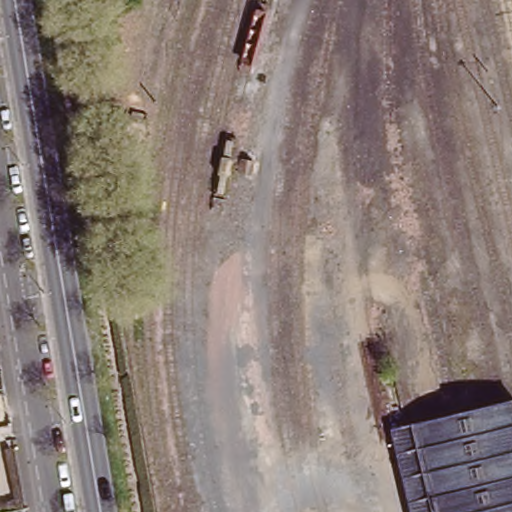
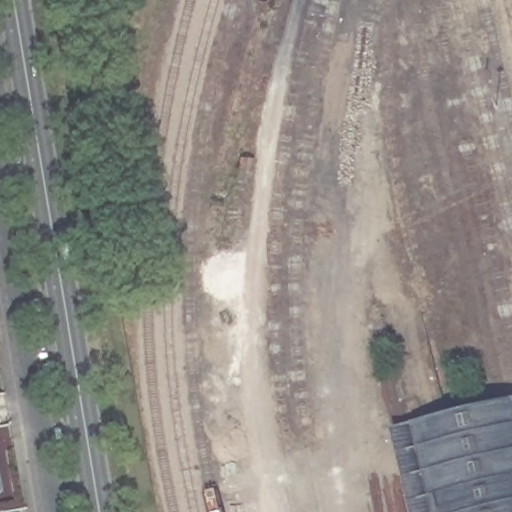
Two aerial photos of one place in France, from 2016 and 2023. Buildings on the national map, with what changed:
unchanged [(410,512),(391,430),(512,396),(512,512),(410,512)]
unchanged [(0,501),(0,479),(4,500),(0,501)]

